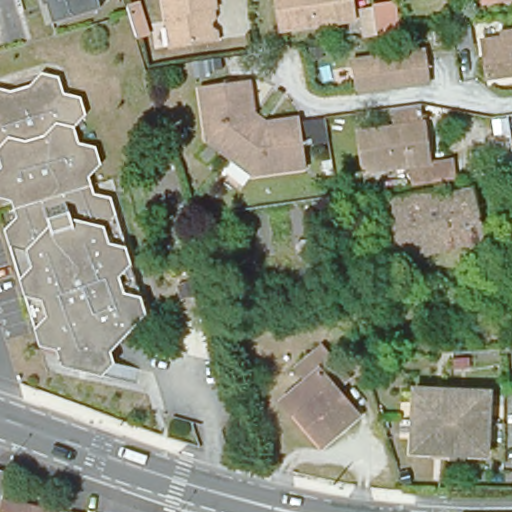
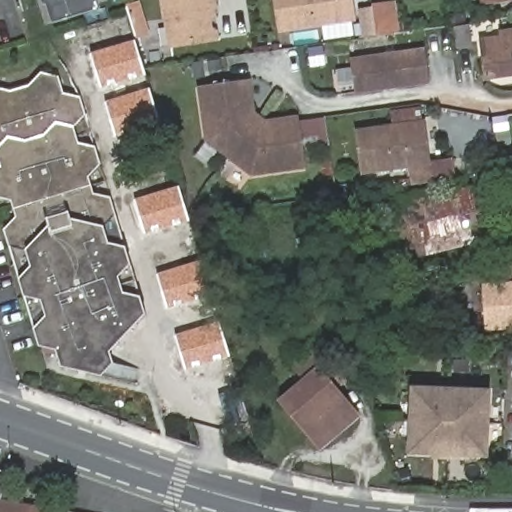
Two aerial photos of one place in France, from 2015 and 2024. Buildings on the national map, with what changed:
unchanged [(44,5),(42,0),(96,0),(99,9),(53,22),(45,25),(39,6),(44,5)]
unchanged [(204,10),(205,15),(208,17),(212,40),(169,46),(163,0),(213,0),(214,8),(204,10)]
unchanged [(280,25),(277,0),(352,0),(354,15),(280,25)]
unchanged [(381,31),(374,0),(392,0),(398,29),(381,31)]
unchanged [(373,4),(377,32),(362,34),(359,7),(373,4)]
unchanged [(481,42),(501,40),(501,33),(512,31),(512,74),(486,78),(481,42)]
new [(102,89),(91,53),(135,41),(145,76),(102,89)]
unchanged [(427,51),(431,83),(357,93),(353,61),(427,51)]
unchanged [(41,79),(59,82),(64,99),(80,102),(85,120),(74,132),(79,148),(96,153),(101,169),(90,184),(95,200),(111,205),(131,270),(120,282),(125,300),(141,303),(146,321),(112,357),(115,371),(145,377),(136,391),(62,373),(57,356),(40,352),(35,334),(46,322),(41,307),(25,302),(5,235),(16,222),(11,207),(0,204),(0,174),(2,172),(0,166),(0,94),(11,97),(29,91),(41,79)]
unchanged [(307,167),(253,175),(229,160),(205,144),(198,90),(248,83),(252,114),(253,117),(258,119),(267,122),(269,122),(299,117),(307,167)]
new [(115,137),(105,101),(150,88),(160,124),(115,137)]
unchanged [(357,137),(393,132),(391,119),(421,115),(428,167),(453,164),(456,182),(411,188),(409,171),(363,177),(357,137)]
new [(144,235),(134,199),(179,185),(189,221),(144,235)]
unchanged [(413,260),(411,250),(389,256),(386,244),(370,248),(365,229),(382,224),(377,205),(427,193),(429,200),(472,188),(478,214),(495,209),(500,228),(483,232),(484,242),(413,260)]
new [(167,308),(156,273),(203,260),(213,295),(167,308)]
new [(486,328),(483,284),(512,282),(512,327),(486,328)]
new [(185,371),(174,335),(220,321),(230,357),(185,371)]
unchanged [(302,376),(290,363),(315,342),(341,373),(329,383),(351,411),(315,442),(278,397),(302,376)]
unchanged [(409,446),(411,382),(488,386),(486,447),(409,446)]
unchanged [(0,471),(5,472),(0,498),(0,471)]
unchanged [(0,501),(54,511),(57,512),(0,512),(0,501)]

